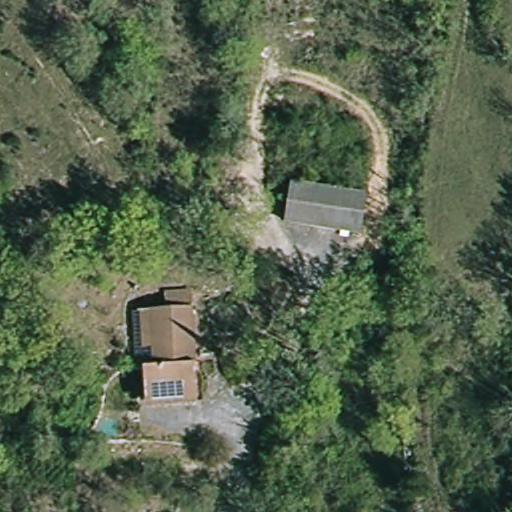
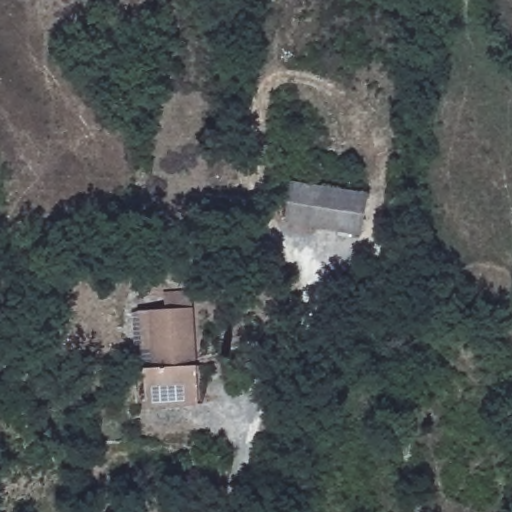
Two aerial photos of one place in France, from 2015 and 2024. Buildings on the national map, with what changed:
unchanged [(283,224),(289,182),(366,194),(359,236),(283,224)]
unchanged [(142,369),(134,370),(131,311),(191,308),(196,399),(144,402),(142,369)]

